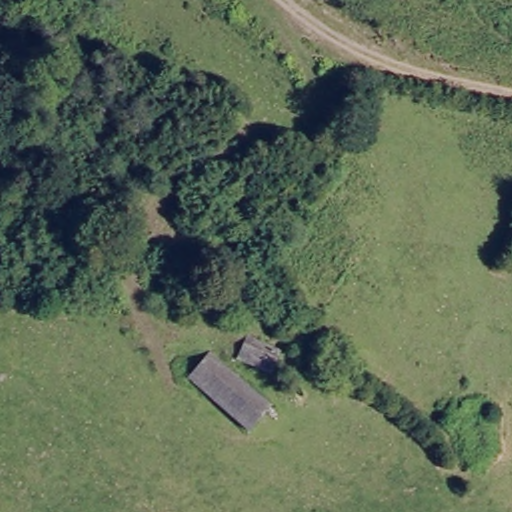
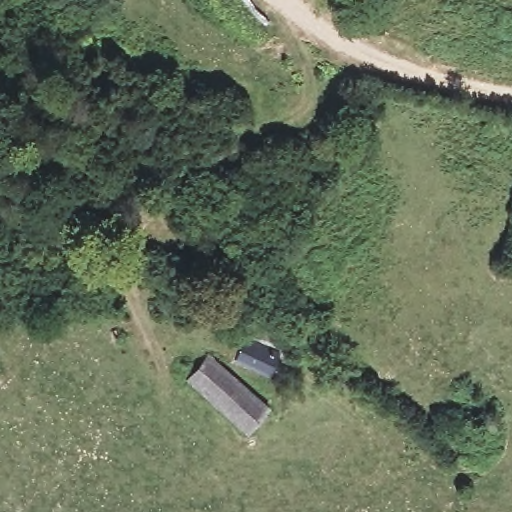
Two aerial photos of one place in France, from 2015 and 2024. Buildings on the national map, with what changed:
unchanged [(265,380),(230,367),(237,345),(273,356),(265,380)]
unchanged [(201,360),(227,378),(272,405),(250,435),(184,391),(201,360)]

